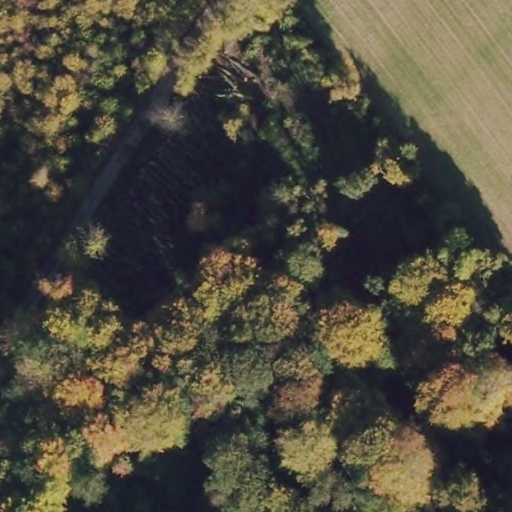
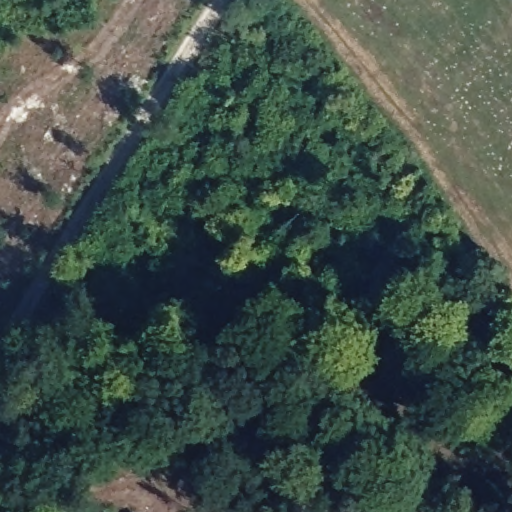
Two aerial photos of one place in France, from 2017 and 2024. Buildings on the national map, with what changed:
unchanged [(112,511),(113,512),(110,512),(112,511)]

